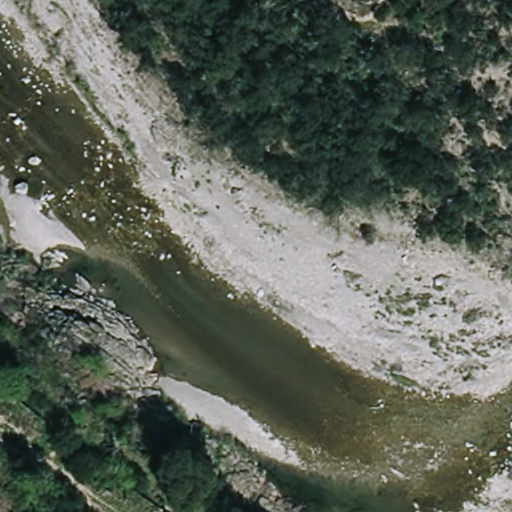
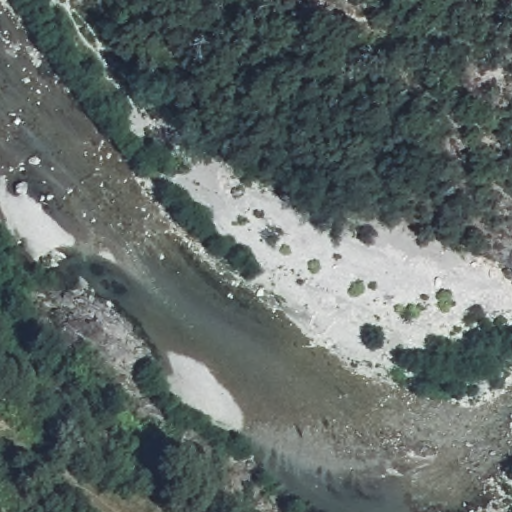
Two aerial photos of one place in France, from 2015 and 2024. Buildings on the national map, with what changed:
[]

